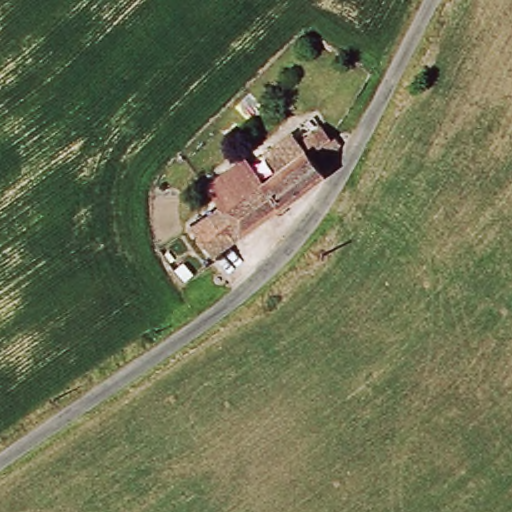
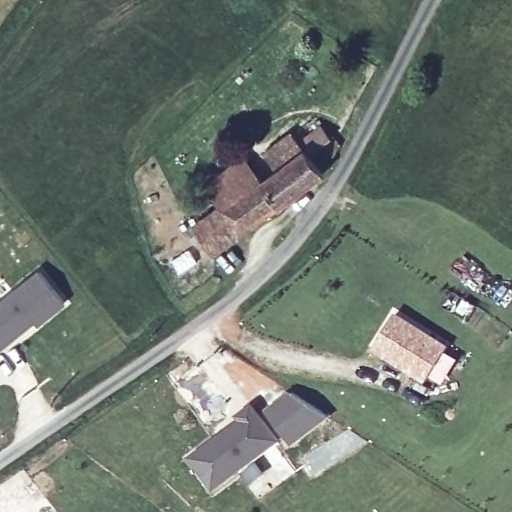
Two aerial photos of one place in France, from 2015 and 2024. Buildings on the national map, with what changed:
unchanged [(325,174),(313,191),(220,257),(199,230),(222,212),(208,195),(247,164),(262,183),(275,172),(267,162),(296,138),(306,147),(324,126),(349,135),(339,154),(324,146),(312,159),(325,174)]
new [(64,305),(38,325),(35,321),(0,349),(0,300),(38,269),(64,305)]
new [(391,316),(444,348),(424,382),(371,350),(391,316)]
new [(240,421),(237,417),(251,407),(276,443),(210,488),(189,456),(240,421)]

